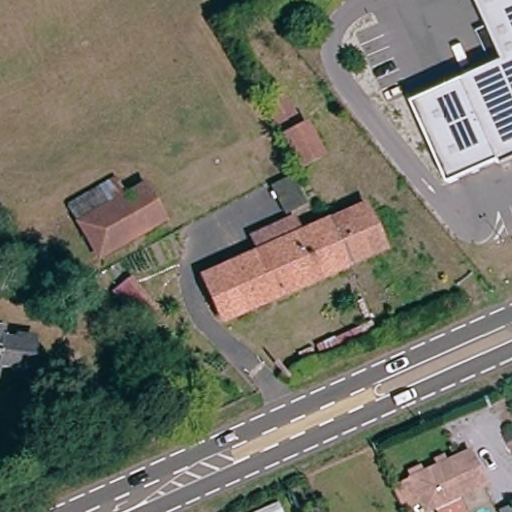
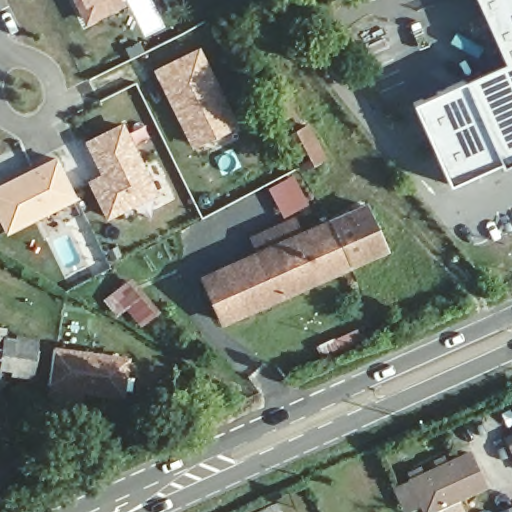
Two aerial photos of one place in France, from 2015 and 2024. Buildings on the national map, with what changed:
new [(74,0),(123,0),(126,6),(86,25),(74,0)]
unchanged [(478,0),(512,0),(512,74),(505,60),(478,0)]
new [(153,70),(200,46),(239,125),(192,148),(153,70)]
unchanged [(505,60),(512,74),(512,108),(485,120),(466,79),(505,60)]
unchanged [(501,161),(451,184),(414,102),(466,79),(485,120),(512,108),(512,162),(503,166),(501,161)]
unchanged [(302,166),(282,133),(267,106),(284,96),(301,123),(306,121),(324,155),(302,166)]
new [(100,174),(84,141),(123,121),(159,195),(106,222),(88,181),(100,174)]
new [(6,235),(0,221),(0,184),(56,156),(77,200),(6,235)]
demolished [(100,263),(70,211),(115,185),(124,201),(144,190),(164,226),(100,263)]
unchanged [(365,210),(385,255),(351,270),(331,225),(365,210)]
unchanged [(351,270),(224,327),(204,281),(331,225),(351,270)]
new [(125,309),(118,316),(104,298),(131,277),(161,311),(142,328),(125,309)]
demolished [(135,290),(150,309),(141,316),(126,297),(135,290)]
unchanged [(30,350),(26,379),(0,375),(0,345),(30,350)]
new [(130,356),(123,399),(48,390),(55,345),(130,356)]
unchanged [(456,498),(464,512),(436,512),(434,508),(426,512),(424,512),(420,504),(403,512),(392,489),(409,481),(468,453),(483,485),(456,498)]

